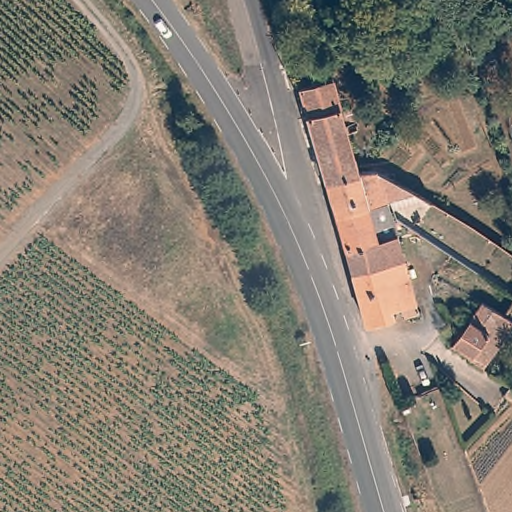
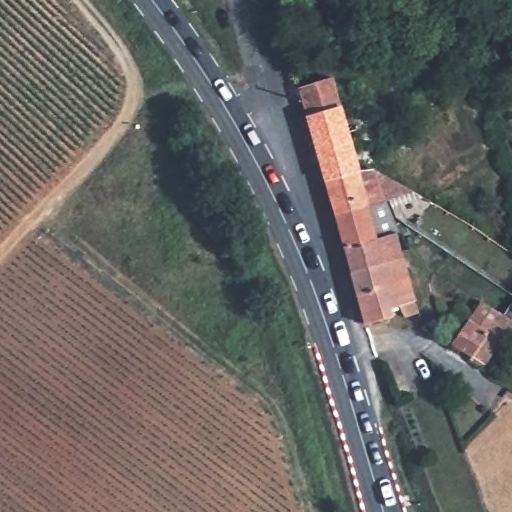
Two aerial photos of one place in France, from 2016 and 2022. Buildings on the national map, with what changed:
unchanged [(432,26),(427,9),(450,2),(455,19),(432,26)]
unchanged [(311,69),(315,82),(332,78),(341,111),(352,108),(359,129),(347,133),(359,171),(325,180),(294,72),(311,69)]
unchanged [(335,217),(325,180),(359,171),(375,169),(412,192),(389,199),(385,201),(335,217)]
unchanged [(395,234),(374,240),(345,249),(335,217),(385,201),(395,234)]
unchanged [(374,240),(395,234),(402,256),(351,270),(345,249),(374,240)]
unchanged [(358,297),(351,270),(402,256),(410,282),(358,297)]
unchanged [(410,282),(416,301),(415,302),(417,312),(404,316),(401,306),(392,308),(394,315),(366,323),(358,297),(410,282)]
unchanged [(503,315),(512,321),(512,325),(482,370),(470,362),(472,358),(452,345),(477,307),(481,301),(503,315)]

